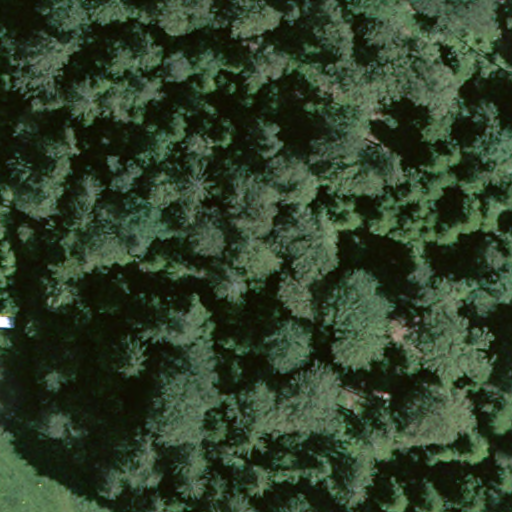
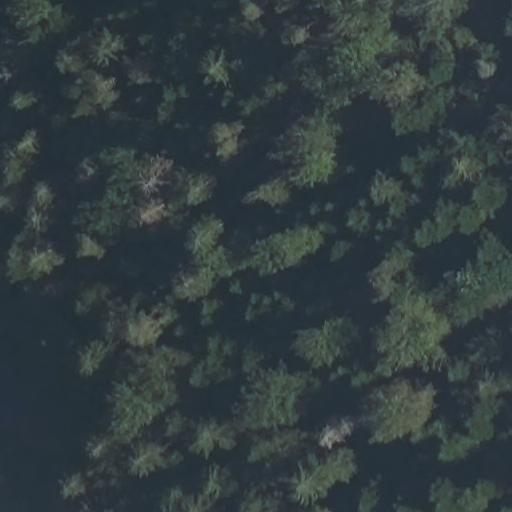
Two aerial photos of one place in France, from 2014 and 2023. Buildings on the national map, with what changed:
[]

